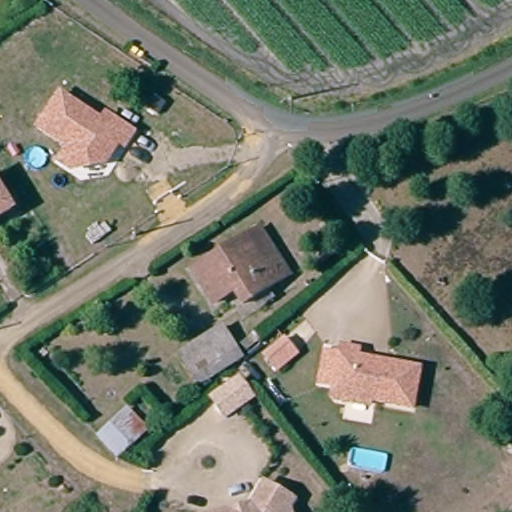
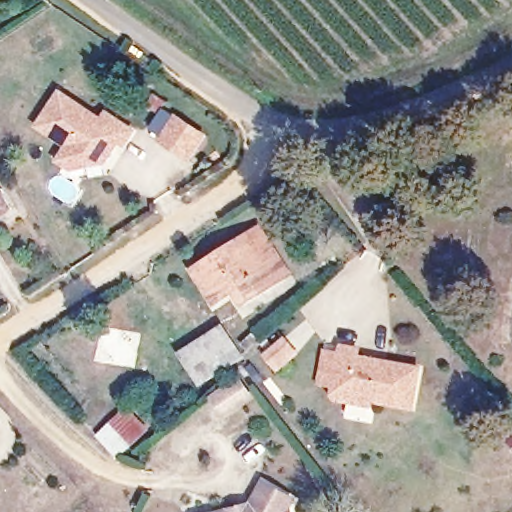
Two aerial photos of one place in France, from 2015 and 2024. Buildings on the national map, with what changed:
unchanged [(101,115),(105,108),(137,130),(126,149),(119,145),(108,164),(71,171),(54,160),(62,146),(33,126),(59,87),(101,115)]
new [(157,141),(174,114),(209,134),(191,163),(157,141)]
unchanged [(5,217),(0,220),(0,208),(5,217)]
unchanged [(267,229),(288,274),(245,303),(239,289),(214,305),(194,269),(267,229)]
unchanged [(223,324),(245,358),(196,387),(190,379),(226,359),(210,333),(223,324)]
unchanged [(210,333),(226,359),(190,379),(175,353),(210,333)]
unchanged [(300,354),(276,373),(261,352),(283,335),(300,354)]
unchanged [(316,380),(323,348),(338,351),(340,344),(357,347),(356,354),(419,365),(411,404),(350,394),(344,398),(333,397),(330,391),(331,383),(316,380)]
unchanged [(255,398),(224,419),(207,396),(239,374),(255,398)]
unchanged [(146,438),(116,468),(84,441),(116,411),(146,438)]
unchanged [(251,498),(261,477),(294,499),(290,506),(292,512),(199,512),(251,498)]

